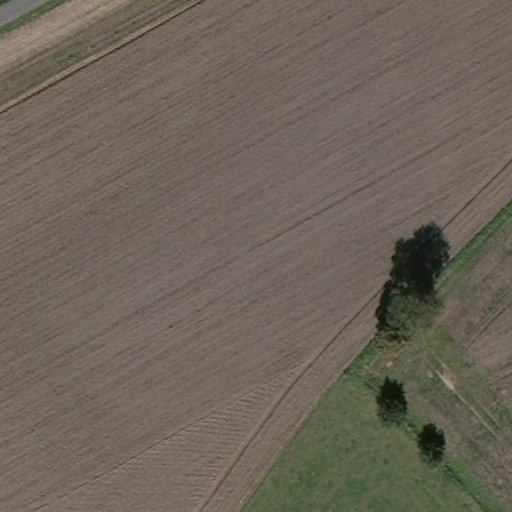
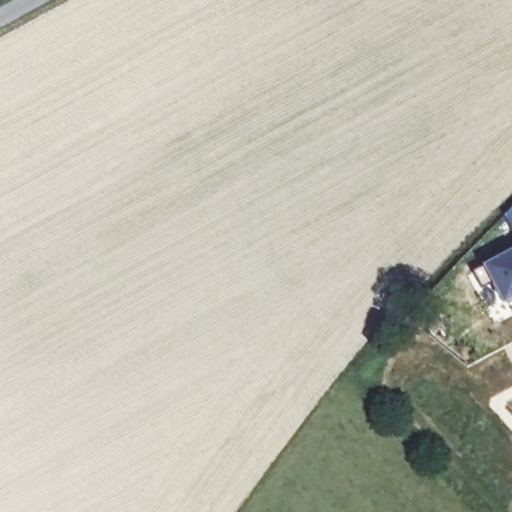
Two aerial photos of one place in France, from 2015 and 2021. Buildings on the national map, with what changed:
new [(512,206),(512,226),(505,213),(512,206)]
new [(503,308),(478,261),(512,245),(512,303),(503,308)]

